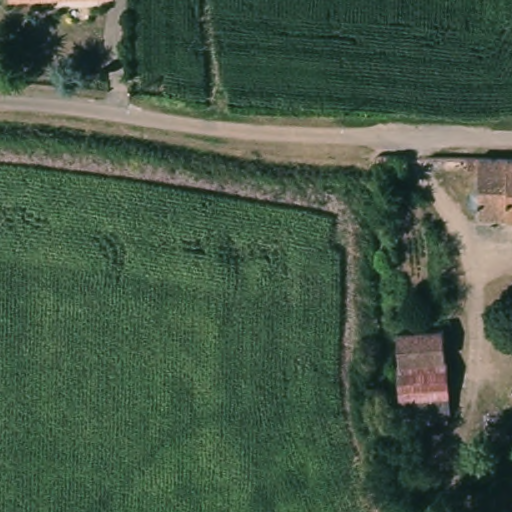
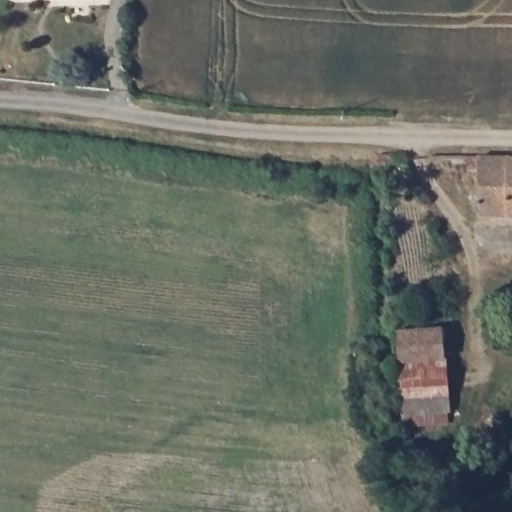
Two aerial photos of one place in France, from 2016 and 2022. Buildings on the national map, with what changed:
unchanged [(481,167),(470,167),(470,156),(471,156),(512,157),(512,215),(479,213),(481,167)]
unchanged [(401,394),(397,337),(442,337),(447,417),(401,420),(397,395),(401,394)]

